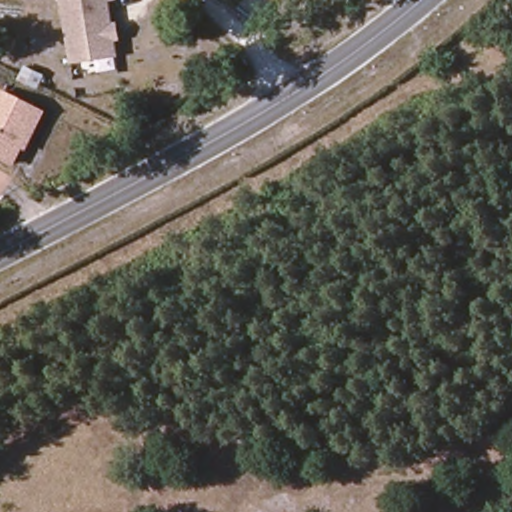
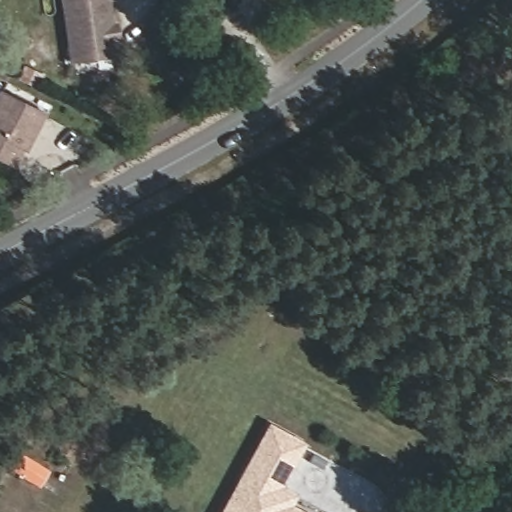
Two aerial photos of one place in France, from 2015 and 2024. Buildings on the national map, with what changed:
unchanged [(117,42),(111,43),(114,57),(72,64),(62,0),(112,0),(112,1),(105,2),(109,29),(115,27),(117,42)]
unchanged [(31,152),(24,149),(16,168),(0,161),(0,89),(47,112),(31,152)]
new [(297,493),(291,503),(307,512),(218,512),(267,422),(306,442),(282,486),(297,493)]

